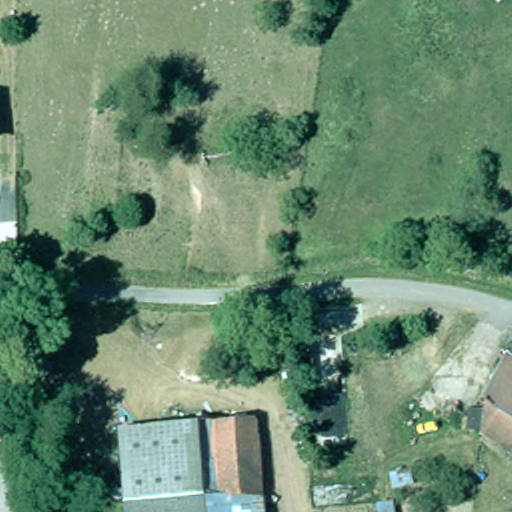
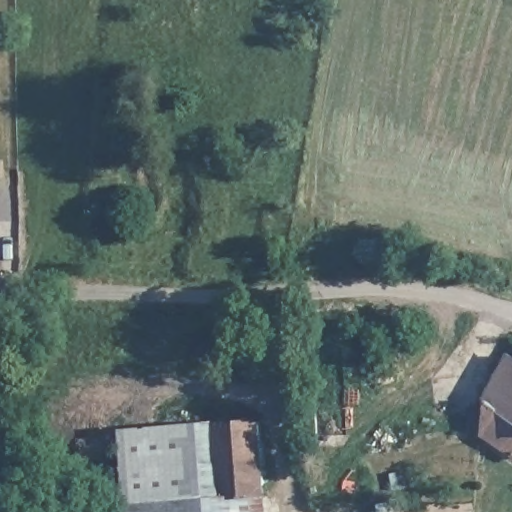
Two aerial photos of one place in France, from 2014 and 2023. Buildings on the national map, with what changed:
unchanged [(296,335),(275,336),(274,315),(295,314),(296,335)]
unchanged [(512,359),(512,377),(482,421),(481,422),(478,413),(472,393),(481,380),(501,352),(512,359)]
unchanged [(512,377),(512,444),(482,421),(512,377)]
unchanged [(214,498),(211,426),(254,424),(258,512),(214,512),(214,498)]
unchanged [(120,428),(211,426),(214,498),(123,502),(120,428)]
unchanged [(123,502),(214,498),(214,512),(123,512),(123,502)]

